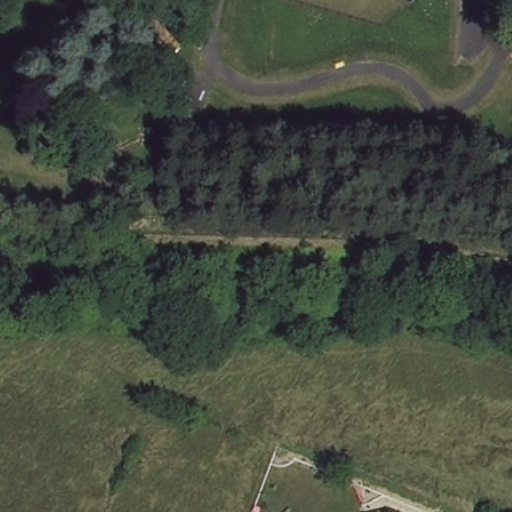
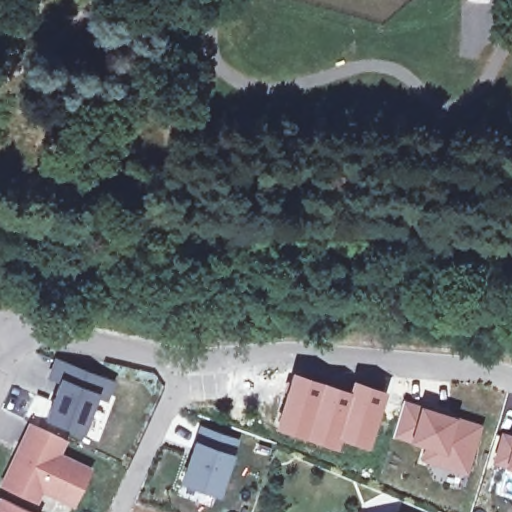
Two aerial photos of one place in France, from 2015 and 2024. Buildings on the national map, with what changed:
new [(115,386),(108,402),(97,397),(82,433),(49,419),(65,382),(54,378),(60,363),(115,386)]
new [(291,370),(349,388),(339,439),(335,449),(275,429),(291,370)]
new [(349,388),(351,378),(385,390),(367,447),(339,439),(349,388)]
new [(420,460),(424,447),(409,442),(392,436),(402,401),(420,405),(455,417),(482,425),(467,474),(420,460)]
new [(219,496),(179,483),(195,441),(199,425),(240,438),(234,454),(219,496)]
new [(67,442),(60,457),(94,473),(76,509),(45,494),(40,505),(5,488),(34,426),(67,442)]
new [(501,431),(512,433),(512,469),(492,463),(501,431)]
new [(0,510),(5,500),(30,512),(0,512),(0,510)]

